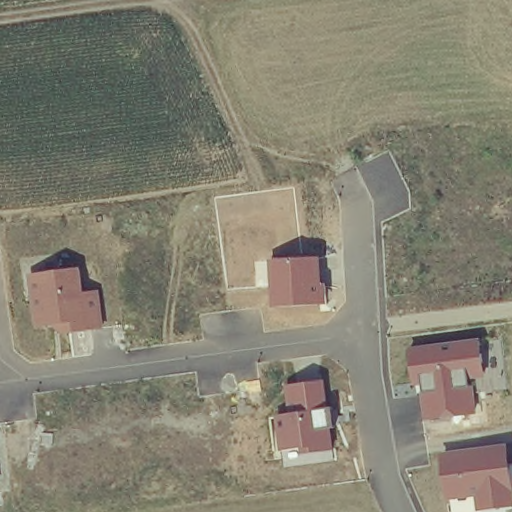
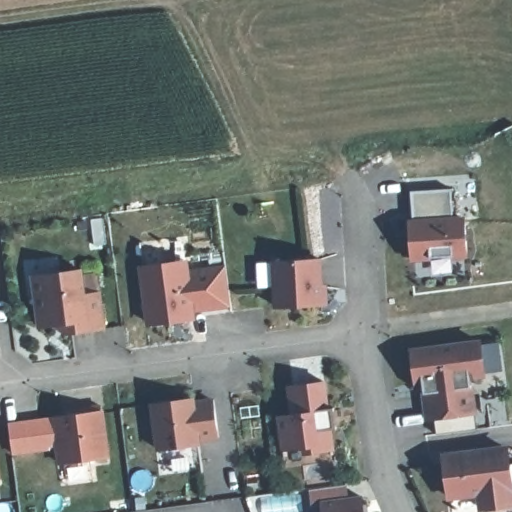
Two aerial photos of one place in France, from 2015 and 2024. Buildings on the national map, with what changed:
new [(412,191),(451,189),(453,220),(464,220),(466,254),(412,258),(411,241),(410,224),(414,223),(412,191)]
unchanged [(275,307),(272,260),(322,256),(325,282),(330,282),(331,303),(275,307)]
new [(189,265),(188,272),(223,269),(228,308),(192,313),(192,320),(145,325),(140,270),(189,265)]
unchanged [(71,326),(70,317),(45,319),(41,271),(87,268),(90,290),(107,288),(111,325),(71,326)]
unchanged [(479,382),(483,410),(424,414),(421,386),(414,387),(410,343),(486,337),(491,381),(479,382)]
unchanged [(333,406),(336,446),(285,450),(283,409),(295,407),(293,378),(329,376),(333,406)]
new [(219,439),(200,441),(155,448),(150,402),(194,397),(213,397),(219,439)]
new [(111,457),(59,463),(51,416),(104,410),(111,457)]
unchanged [(478,506),(476,493),(445,496),(440,451),(510,445),(512,467),(512,503),(478,506)]
unchanged [(2,447),(4,478),(0,478),(0,447),(2,447)]
new [(321,512),(321,501),(362,496),(363,512),(321,512)]

